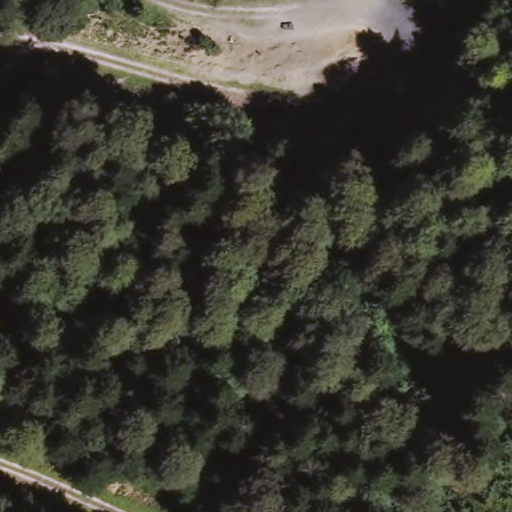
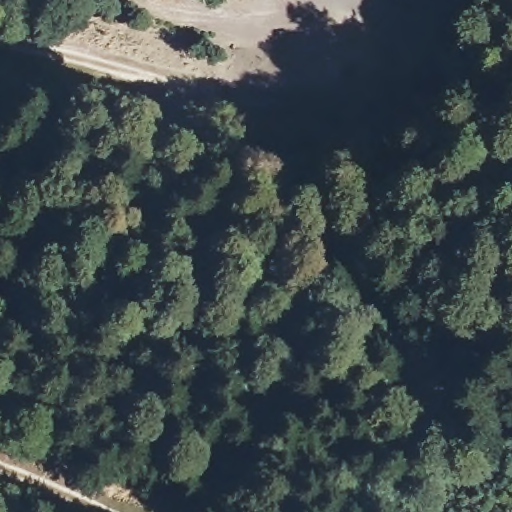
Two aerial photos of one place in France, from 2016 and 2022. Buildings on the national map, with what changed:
unchanged [(391,0),(395,0),(391,1),(391,0)]

